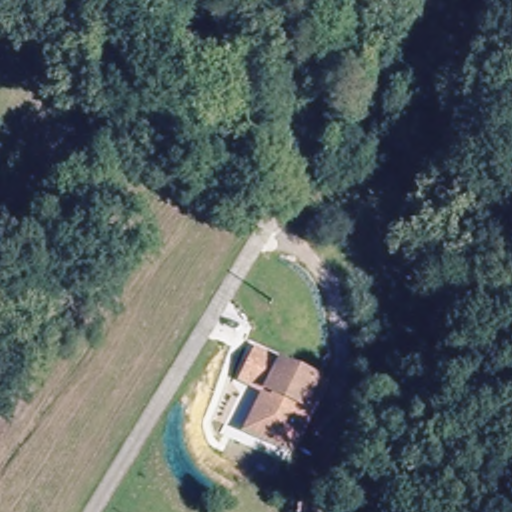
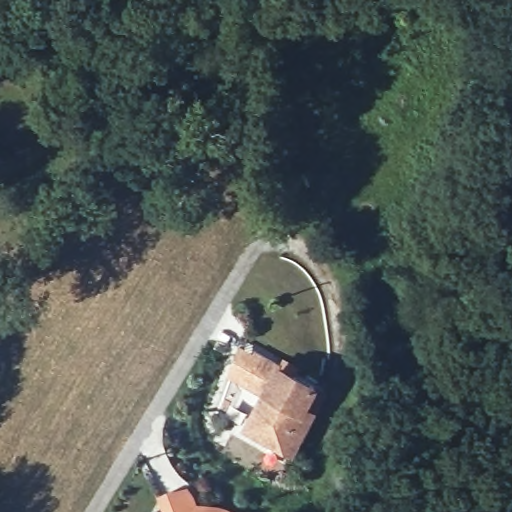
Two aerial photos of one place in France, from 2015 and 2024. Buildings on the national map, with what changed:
unchanged [(280,360),(323,382),(329,387),(295,453),(247,429),(263,390),(242,380),(255,349),(280,360)]
new [(187,487),(194,495),(198,503),(213,502),(223,505),(237,512),(163,512),(157,495),(187,487)]

